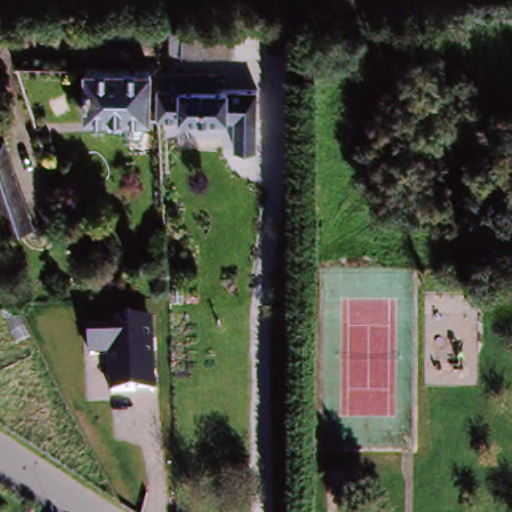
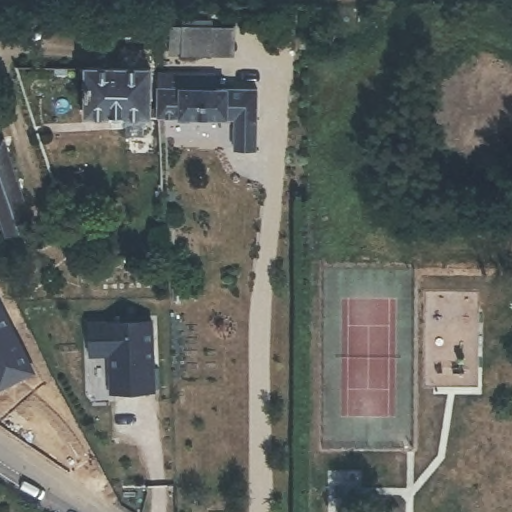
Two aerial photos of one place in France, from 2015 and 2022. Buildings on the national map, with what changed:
unchanged [(182,26),(210,26),(238,29),(236,60),(209,57),(210,64),(181,61),(182,52),(169,54),(171,22),(182,26)]
unchanged [(138,107),(138,115),(85,116),(81,70),(97,70),(136,68),(138,107)]
unchanged [(260,120),(158,122),(158,112),(158,92),(157,77),(217,77),(219,88),(259,88),(260,120)]
unchanged [(256,149),(234,149),(235,121),(257,120),(256,149)]
unchanged [(0,231),(0,147),(26,230),(3,240),(0,231)]
new [(33,377),(0,392),(0,308),(1,308),(33,377)]
unchanged [(156,393),(110,395),(110,355),(91,356),(90,322),(152,320),(156,393)]

